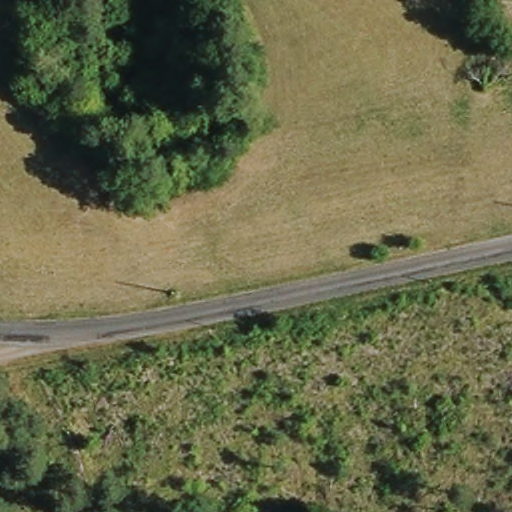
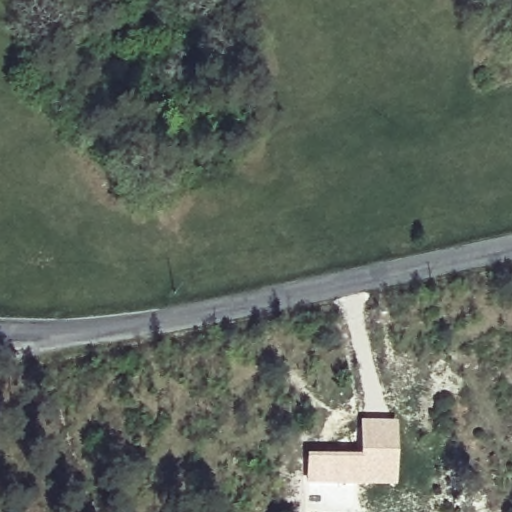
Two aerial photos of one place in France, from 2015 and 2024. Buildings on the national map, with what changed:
new [(305,456),(358,456),(359,420),(396,422),(395,488),(305,486),(305,456)]

